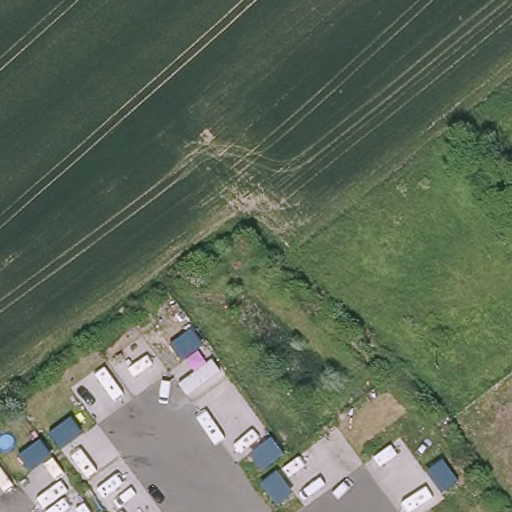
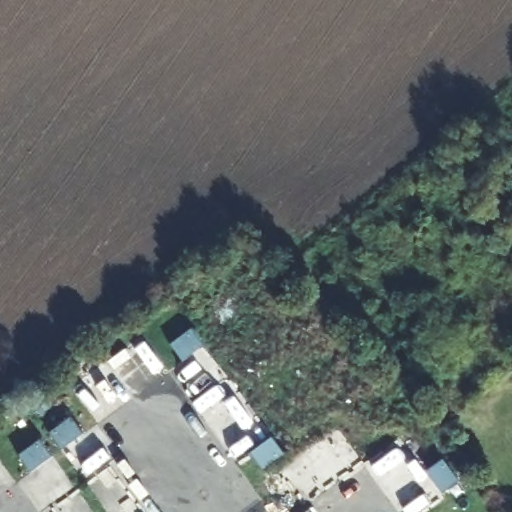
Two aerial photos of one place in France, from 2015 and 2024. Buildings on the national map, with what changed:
unchanged [(179,340),(189,334),(197,346),(186,352),(179,340)]
unchanged [(63,426),(72,438),(61,445),(52,433),(63,426)]
unchanged [(36,444),(45,456),(35,464),(26,452),(36,444)]
unchanged [(269,444),(279,456),(269,464),(259,452),(269,444)]
unchanged [(442,465),(451,475),(439,483),(431,473),(442,465)]
unchanged [(277,481),(282,487),(271,495),(267,489),(264,486),(275,478),(277,481)]

